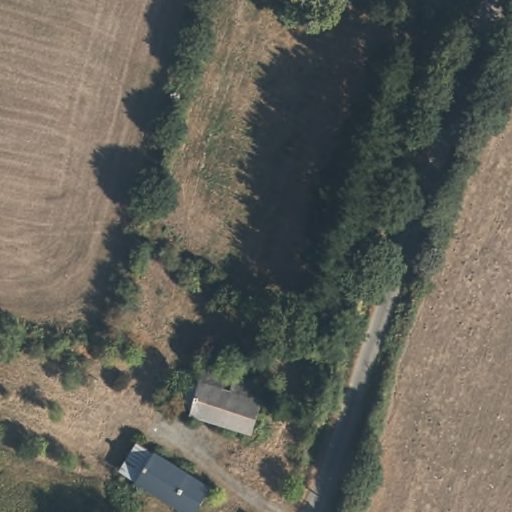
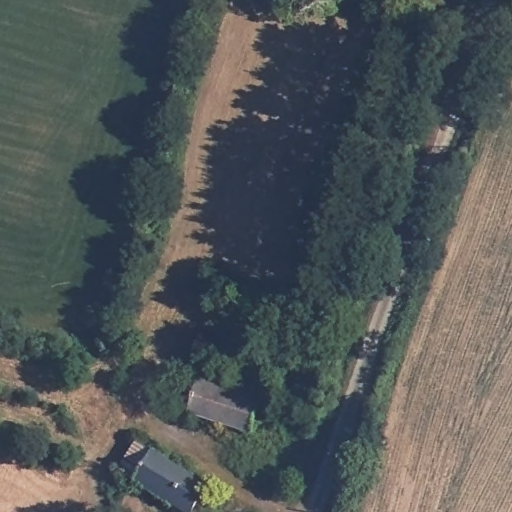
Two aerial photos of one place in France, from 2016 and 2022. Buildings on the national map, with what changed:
unchanged [(222,385),(231,389),(236,372),(254,378),(249,393),(261,398),(250,430),(190,411),(192,406),(172,401),(181,376),(198,382),(203,364),(225,370),(222,385)]
unchanged [(192,508),(174,495),(172,497),(135,474),(123,466),(137,446),(147,453),(152,445),(209,481),(192,508)]

